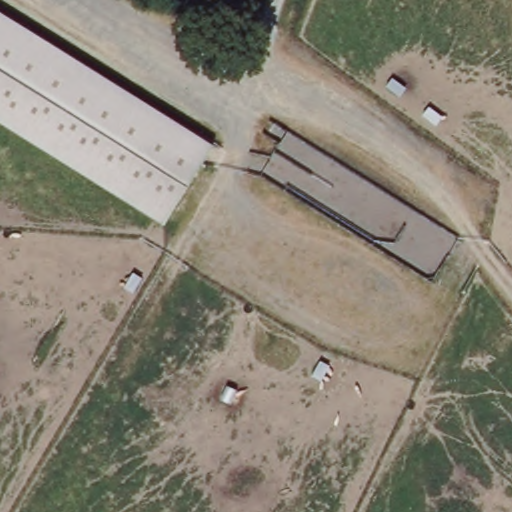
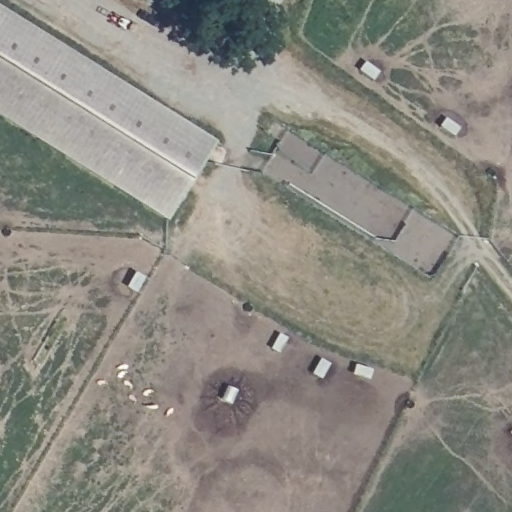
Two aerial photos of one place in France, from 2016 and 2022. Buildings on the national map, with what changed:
unchanged [(167,220),(0,116),(0,11),(214,144),(167,220)]

